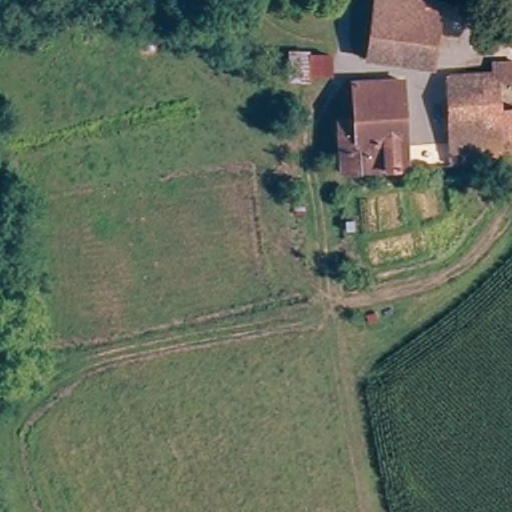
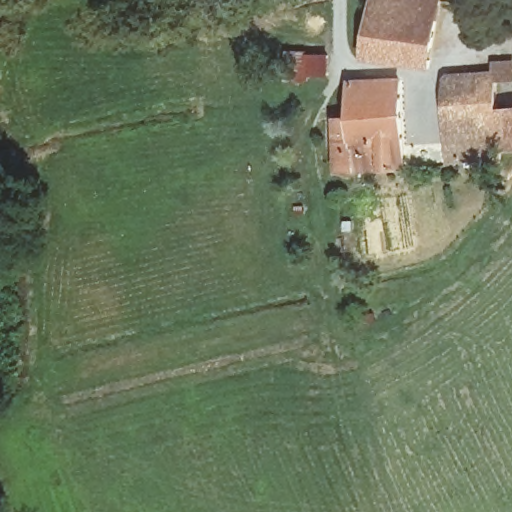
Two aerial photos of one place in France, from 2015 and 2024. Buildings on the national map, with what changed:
unchanged [(377,0),(390,0),(402,1),(403,0),(445,0),(444,6),(436,72),(369,65),(377,0)]
unchanged [(319,77),(319,56),(339,57),(339,77),(319,77)]
unchanged [(497,71),(496,60),(512,57),(512,81),(505,82),(504,106),(512,107),(512,162),(453,163),(450,74),(497,71)]
unchanged [(412,165),(394,168),(353,174),(350,121),(363,120),(361,85),(409,82),(412,165)]

